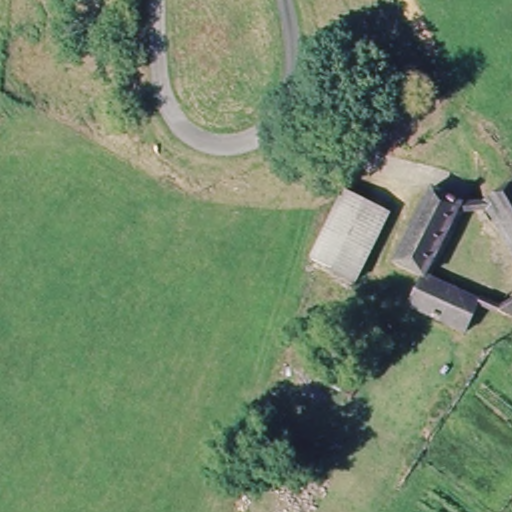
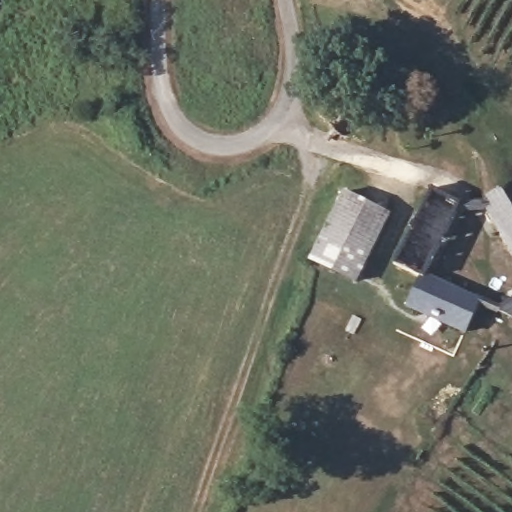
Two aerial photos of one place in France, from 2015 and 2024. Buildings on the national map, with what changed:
unchanged [(512,189),(512,261),(481,204),(512,189)]
unchanged [(458,205),(422,278),(395,265),(432,190),(458,205)]
unchanged [(308,260),(340,195),(345,199),(383,219),(353,282),(320,266),(308,260)]
unchanged [(478,305),(465,337),(405,309),(421,279),(478,305)]
unchanged [(492,315),(512,305),(512,324),(510,325),(492,315)]

